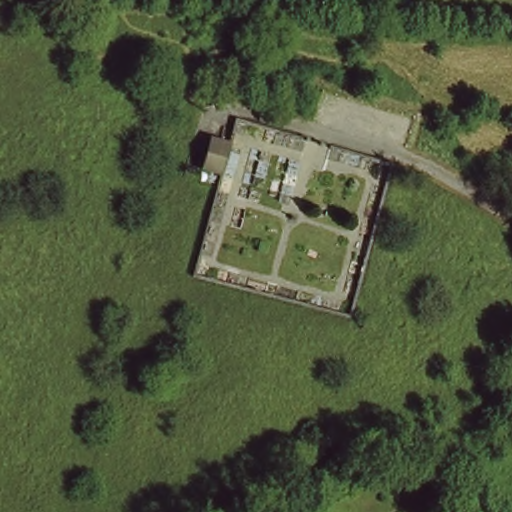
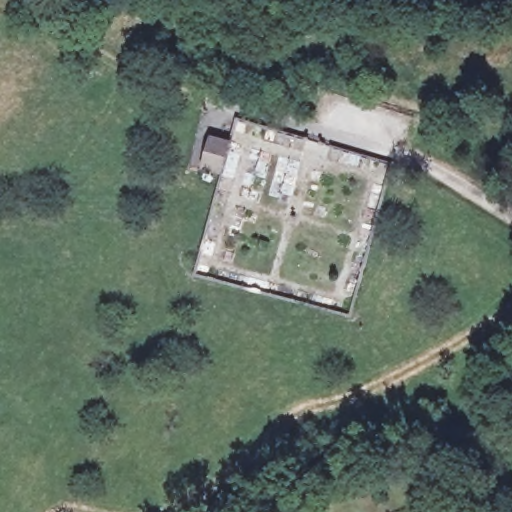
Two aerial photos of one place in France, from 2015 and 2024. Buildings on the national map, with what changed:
unchanged [(201,170),(209,140),(229,145),(222,176),(201,170)]
unchanged [(432,506),(432,471),(447,470),(448,506),(432,506)]

